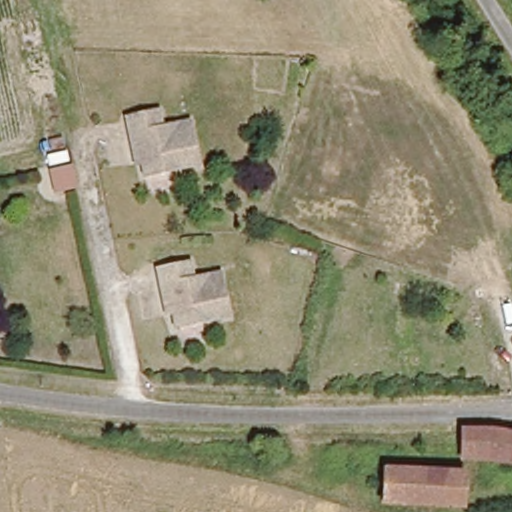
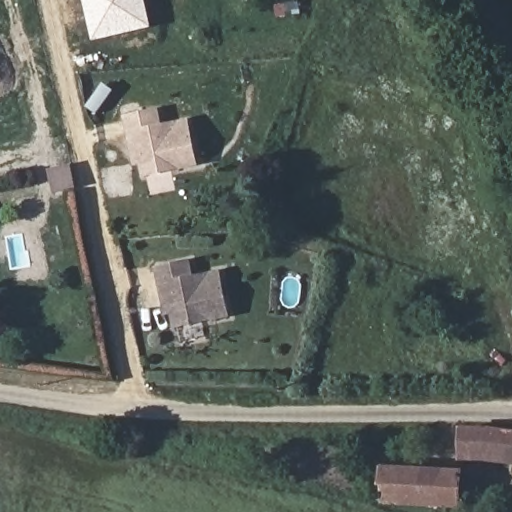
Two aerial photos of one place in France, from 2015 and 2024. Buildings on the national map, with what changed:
new [(93,41),(84,0),(146,0),(152,28),(93,41)]
unchanged [(132,151),(125,117),(158,110),(161,126),(188,121),(198,164),(143,175),(137,150),(132,151)]
unchanged [(78,189),(54,193),(47,168),(72,162),(78,189)]
unchanged [(167,303),(159,269),(192,262),(195,278),(222,273),(231,315),(177,326),(172,302),(167,303)]
unchanged [(463,459),(462,459),(463,430),(512,434),(512,462),(497,460),(463,459)]
unchanged [(460,505),(442,505),(382,502),(384,470),(444,473),(461,473),(460,505)]

